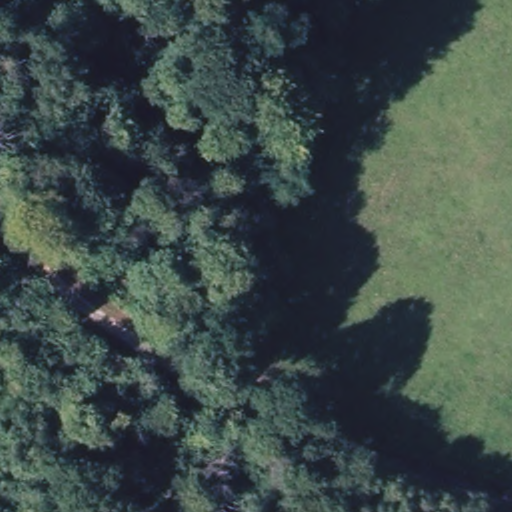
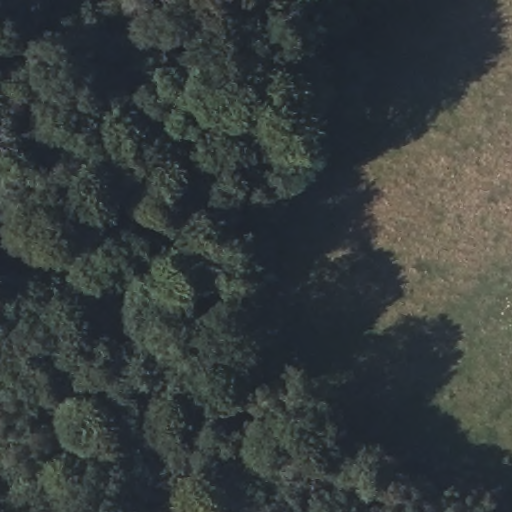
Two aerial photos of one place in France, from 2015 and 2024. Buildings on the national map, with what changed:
unchanged [(42,22),(31,43),(6,31),(17,6),(42,22)]

